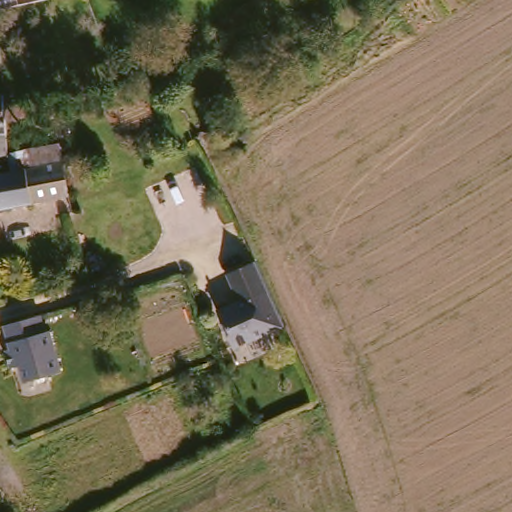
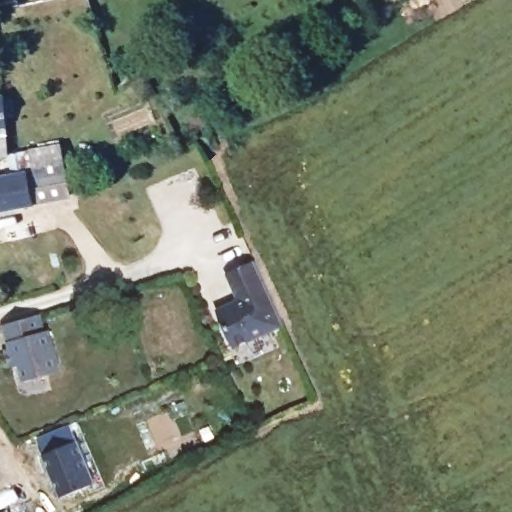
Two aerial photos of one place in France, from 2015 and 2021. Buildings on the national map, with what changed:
new [(0,10),(0,5),(1,10),(0,10)]
unchanged [(0,122),(0,104),(3,121),(0,122)]
unchanged [(0,131),(5,130),(8,151),(0,153),(0,131)]
unchanged [(8,151),(24,149),(28,170),(43,167),(66,164),(71,194),(49,200),(0,208),(0,175),(11,173),(8,151)]
unchanged [(231,349),(214,313),(236,302),(223,276),(250,263),(280,325),(231,349)]
unchanged [(27,383),(23,367),(13,370),(8,352),(13,350),(6,327),(41,316),(46,333),(51,332),(63,372),(27,383)]
new [(73,426),(80,442),(81,441),(98,484),(63,498),(46,455),(47,455),(41,438),(73,426)]

